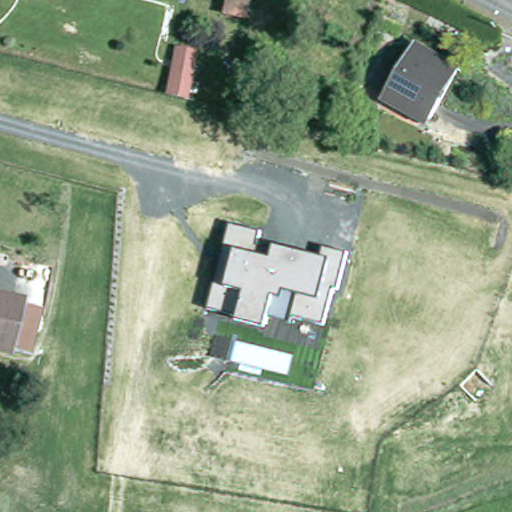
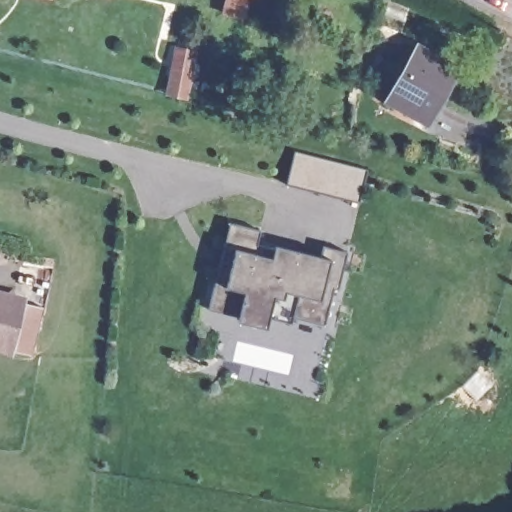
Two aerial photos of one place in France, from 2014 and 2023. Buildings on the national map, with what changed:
unchanged [(226,0),(251,0),(248,19),(223,13),(226,0)]
unchanged [(460,71),(431,120),(410,108),(407,113),(386,101),(400,77),(404,79),(422,49),(460,71)]
new [(295,152),(366,170),(359,204),(287,187),(295,152)]
unchanged [(227,223),(259,229),(253,253),(271,256),(274,245),(322,257),(324,248),(347,253),(338,292),(333,291),(324,325),(291,315),(289,321),(269,316),(266,329),(238,323),(239,315),(207,308),(227,223)]
unchanged [(21,302),(9,350),(0,348),(0,296),(21,302)]
unchanged [(43,307),(30,356),(9,350),(21,302),(43,307)]

